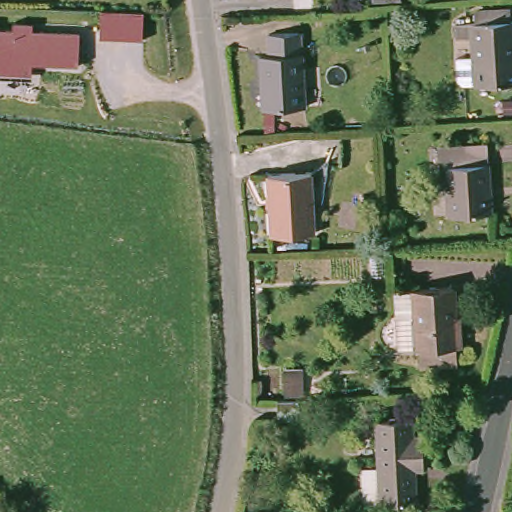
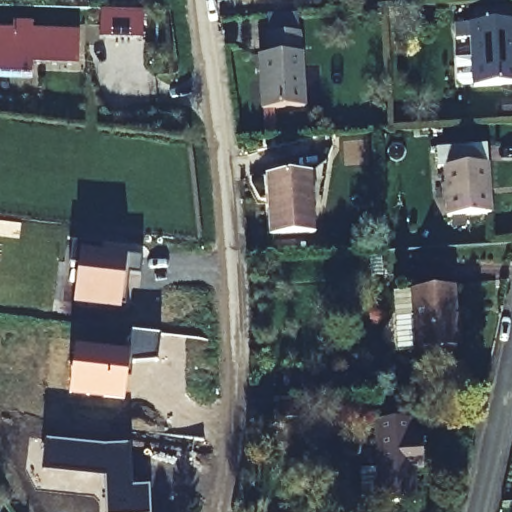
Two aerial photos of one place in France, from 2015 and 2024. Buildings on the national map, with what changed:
unchanged [(389,0),(373,1),(373,0),(388,0),(389,0)]
unchanged [(462,44),(447,45),(446,30),(483,27),(482,15),(512,13),(512,89),(465,92),(462,44)]
unchanged [(13,27),(13,21),(34,22),(34,30),(81,30),(80,67),(33,65),(31,81),(0,80),(0,27),(13,27)]
unchanged [(306,62),(309,117),(269,120),(266,65),(274,65),(274,44),(273,29),(304,27),(304,41),(306,62)]
unchanged [(385,30),(386,39),(379,40),(379,30),(385,30)]
unchanged [(445,166),(439,167),(437,147),(488,145),(492,213),(448,215),(445,166)]
unchanged [(311,172),(314,233),(271,235),(268,175),(311,172)]
new [(81,250),(143,257),(141,275),(130,274),(124,305),(120,305),(120,310),(74,304),(81,250)]
unchanged [(365,273),(364,251),(375,250),(376,273),(365,273)]
unchanged [(415,367),(414,350),(413,350),(412,348),(393,349),(392,316),(389,291),(409,290),(409,288),(449,286),(450,315),(456,315),(458,346),(452,347),(451,347),(452,365),(415,367)]
new [(76,346),(129,351),(131,332),(161,336),(157,362),(133,363),(131,379),(127,379),(124,399),(70,393),(76,346)]
unchanged [(284,396),(284,389),(284,370),(299,369),(300,388),(300,396),(284,396)]
unchanged [(299,400),(299,420),(279,421),(278,401),(299,400)]
unchanged [(409,470),(412,502),(358,505),(356,468),(373,467),(371,420),(407,418),(408,436),(418,435),(419,457),(419,470),(409,470)]
new [(43,470),(46,440),(108,446),(129,445),(131,486),(149,486),(150,512),(107,512),(104,476),(43,470)]
unchanged [(260,512),(250,512),(250,502),(260,502),(260,512)]

